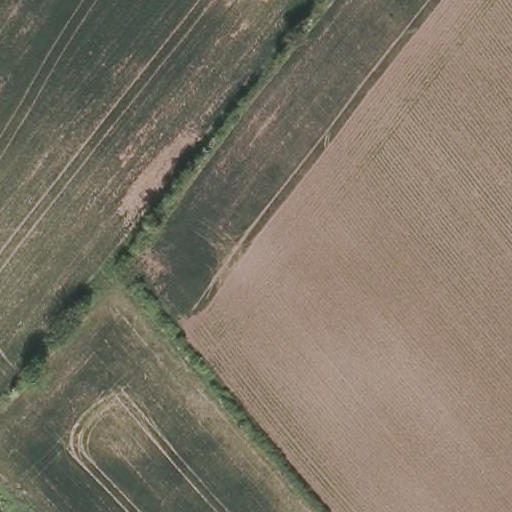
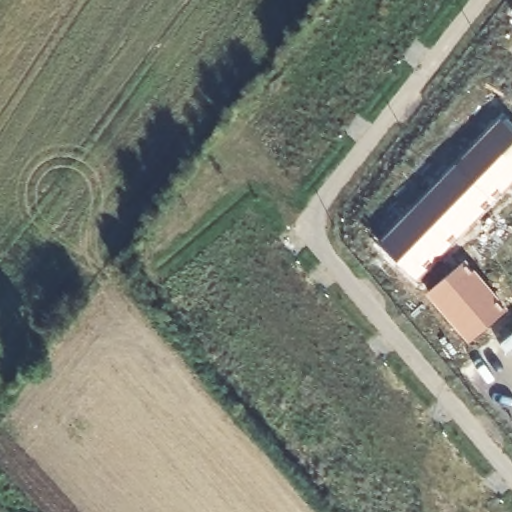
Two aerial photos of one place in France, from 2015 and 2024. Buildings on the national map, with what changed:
new [(380,243),(503,118),(512,126),(512,183),(420,281),(380,243)]
new [(466,260),(509,308),(469,341),(427,293),(466,260)]

